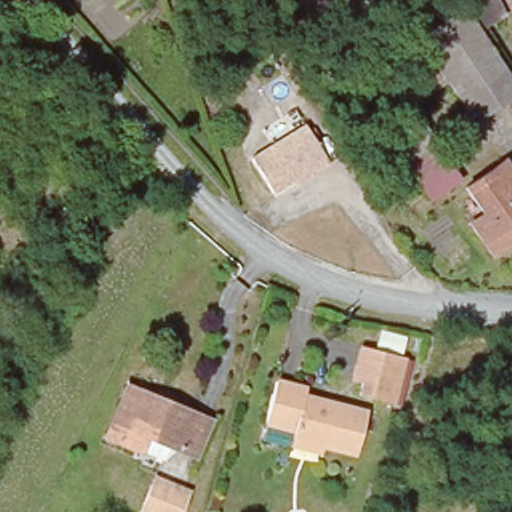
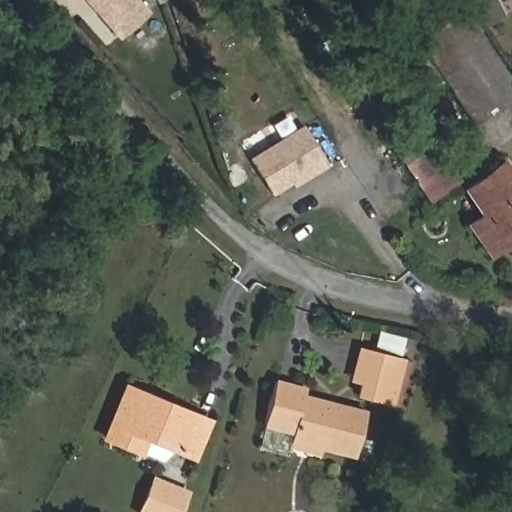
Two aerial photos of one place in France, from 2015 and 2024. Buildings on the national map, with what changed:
new [(119,39),(84,0),(140,0),(150,11),(119,39)]
unchanged [(467,8),(512,82),(512,92),(474,115),(441,65),(422,35),(467,8)]
unchanged [(461,173),(428,193),(387,123),(417,103),(461,173)]
unchanged [(307,129),(333,165),(320,175),(317,171),(280,198),(256,166),(307,129)]
unchanged [(471,211),(481,205),(465,180),(506,155),(512,165),(512,230),(491,243),(471,211)]
unchanged [(395,399),(361,390),(352,388),(363,343),(372,346),(406,355),(395,399)]
unchanged [(194,453),(147,433),(139,451),(100,434),(127,375),(214,415),(194,453)]
unchanged [(272,381),(303,390),(302,397),(365,414),(353,455),(291,439),(292,433),(261,424),(272,381)]
unchanged [(186,489),(177,512),(134,512),(150,475),(186,489)]

